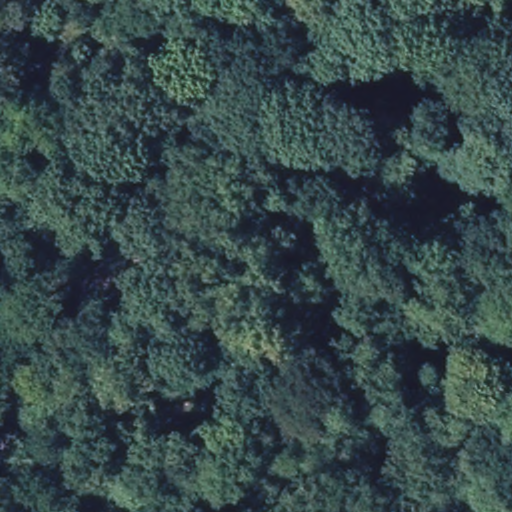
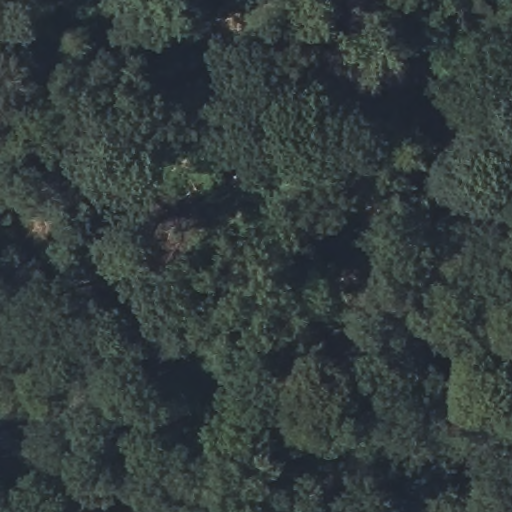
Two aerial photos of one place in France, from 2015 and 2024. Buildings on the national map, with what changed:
unchanged [(508,289),(512,294),(512,324),(502,331),(484,307),(508,289)]

